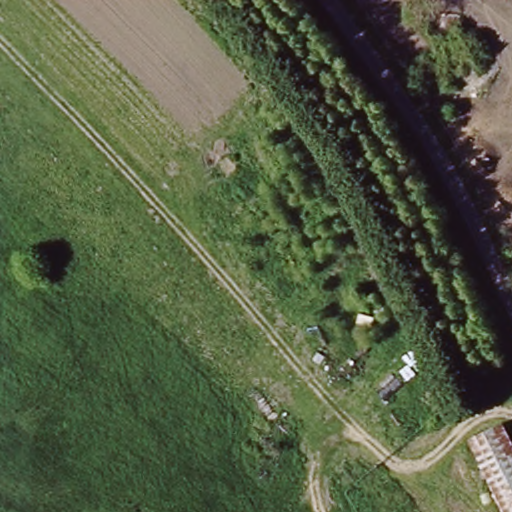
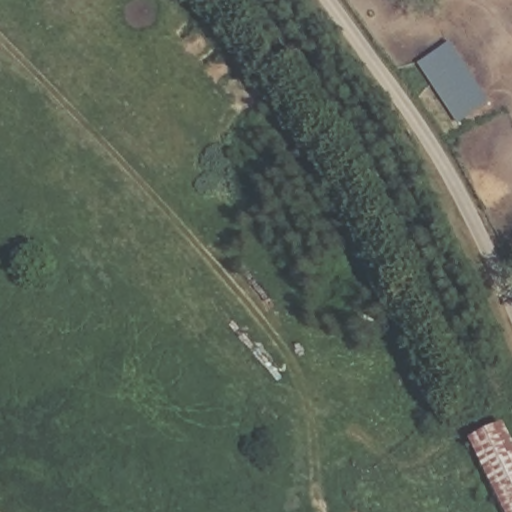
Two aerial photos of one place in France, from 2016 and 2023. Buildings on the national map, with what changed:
new [(460,125),(420,64),(452,43),(491,103),(460,125)]
unchanged [(494,427),(512,462),(512,512),(495,512),(460,445),(494,427)]

